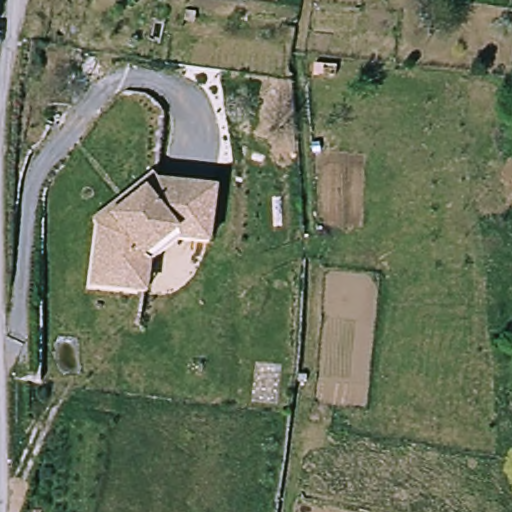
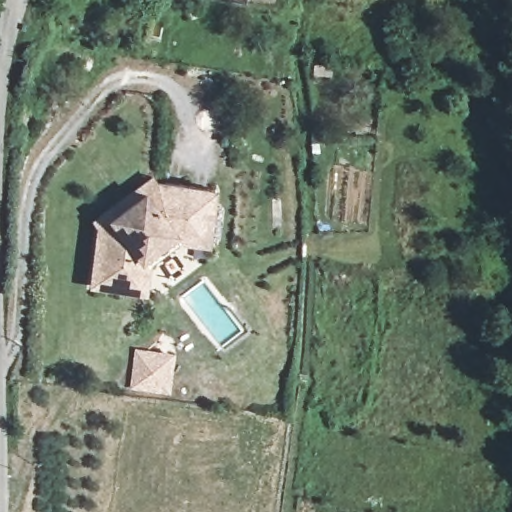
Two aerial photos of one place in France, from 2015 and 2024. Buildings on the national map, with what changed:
unchanged [(97,220),(92,214),(155,174),(160,180),(220,190),(212,244),(181,240),(172,245),(148,258),(143,288),(87,277),(94,235),(97,220)]
new [(170,392),(132,387),(136,348),(175,353),(170,392)]

